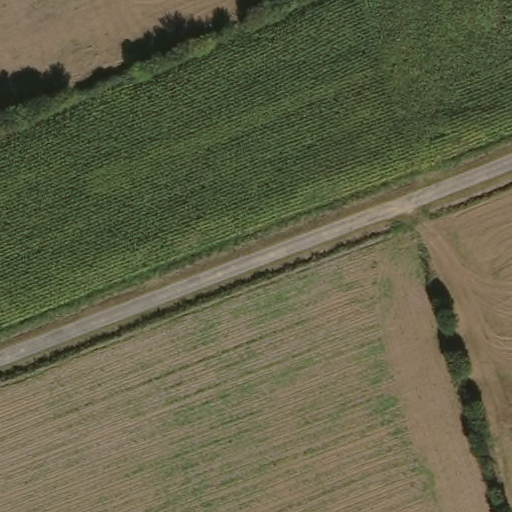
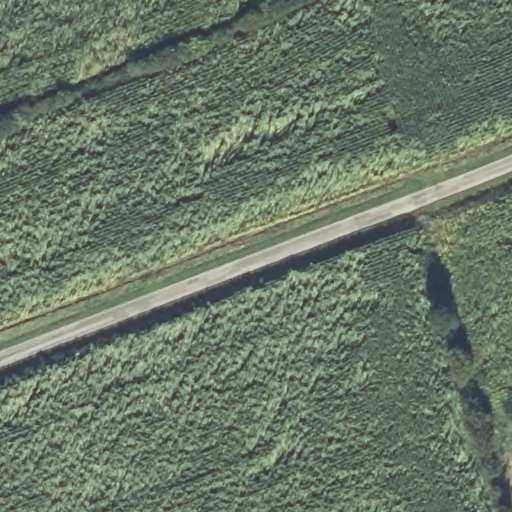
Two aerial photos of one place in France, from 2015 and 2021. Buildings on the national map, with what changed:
[]

